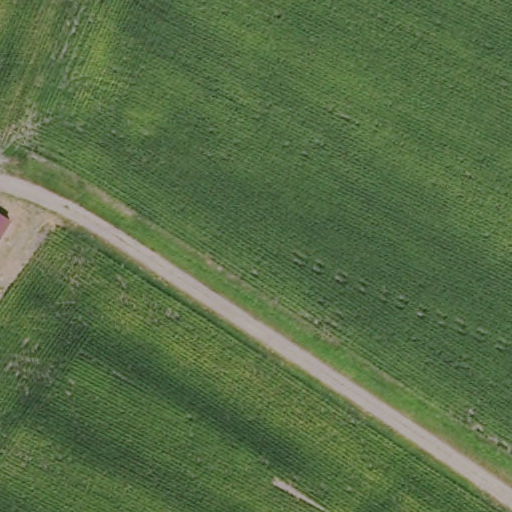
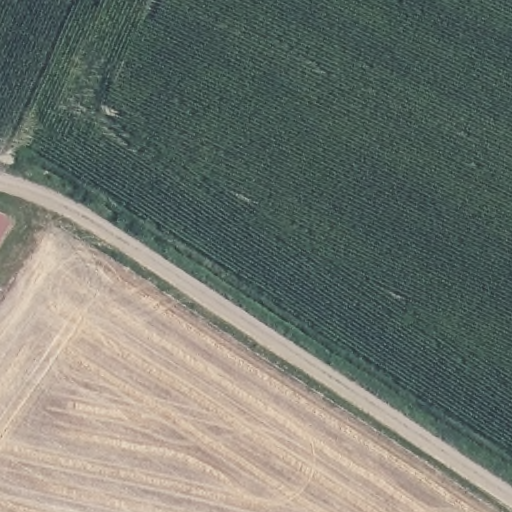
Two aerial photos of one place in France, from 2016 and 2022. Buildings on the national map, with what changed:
unchanged [(0,216),(7,221),(0,231),(0,216)]

